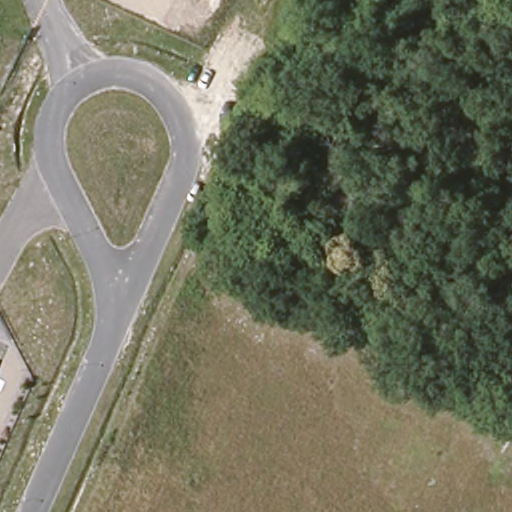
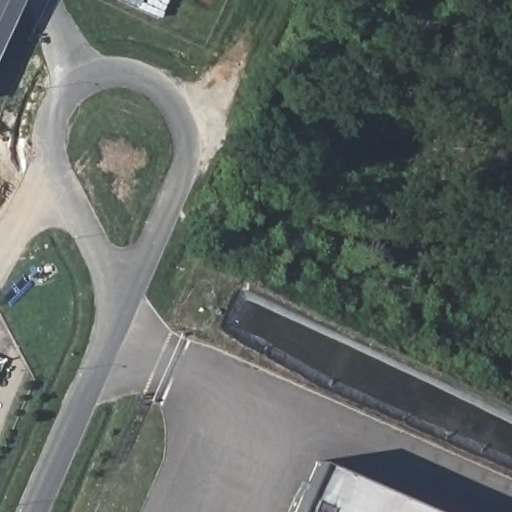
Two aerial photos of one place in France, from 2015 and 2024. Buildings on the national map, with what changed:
new [(2,51),(0,50),(0,0),(23,0),(2,51)]
unchanged [(2,51),(0,54),(0,50),(2,51)]
new [(294,512),(317,461),(432,512),(294,512)]

